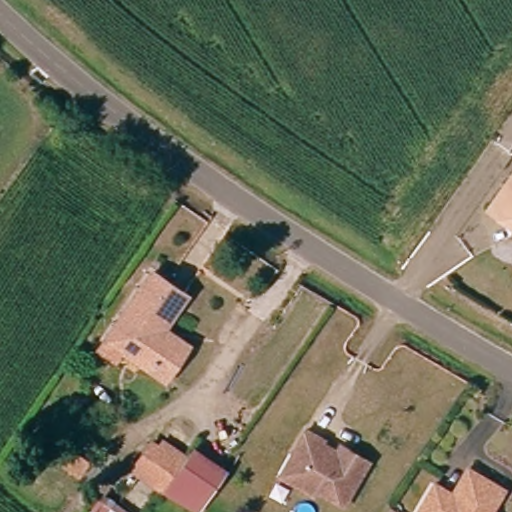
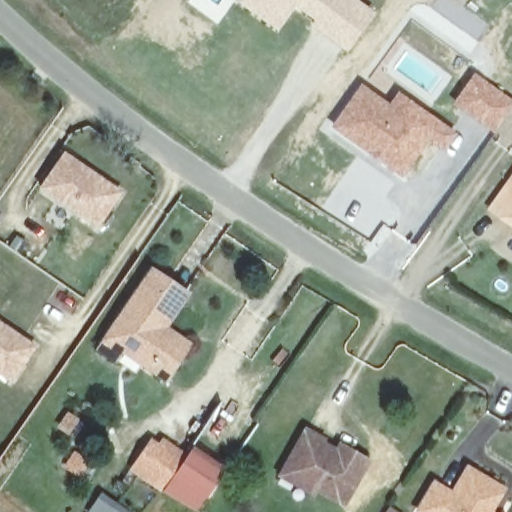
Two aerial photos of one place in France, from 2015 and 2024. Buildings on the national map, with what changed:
new [(374,12),(346,52),(309,28),(315,21),(293,7),(277,31),(234,3),(237,0),(357,0),(374,12)]
new [(512,99),(512,105),(492,133),(451,106),(474,74),(512,99)]
new [(389,105),(397,92),(456,134),(443,152),(428,141),(401,177),(329,127),(360,84),(389,105)]
new [(121,191),(97,227),(38,189),(63,152),(121,191)]
unchanged [(494,202),(512,176),(512,216),(494,202)]
unchanged [(125,347),(118,357),(97,344),(148,271),(179,292),(158,322),(184,338),(162,372),(125,347)]
new [(11,382),(0,374),(0,321),(36,345),(11,382)]
unchanged [(330,445),(345,455),(349,448),(365,459),(338,501),(323,491),(327,486),(316,480),(308,492),(278,473),(306,429),(330,445)]
unchanged [(199,507),(164,486),(134,467),(135,466),(142,454),(153,438),(163,445),(169,434),(189,447),(183,456),(218,477),(199,507)]
unchanged [(435,480),(452,491),(466,468),(500,489),(487,509),(492,512),(425,512),(418,508),(435,480)]
unchanged [(141,512),(88,512),(102,487),(141,511),(141,512)]

